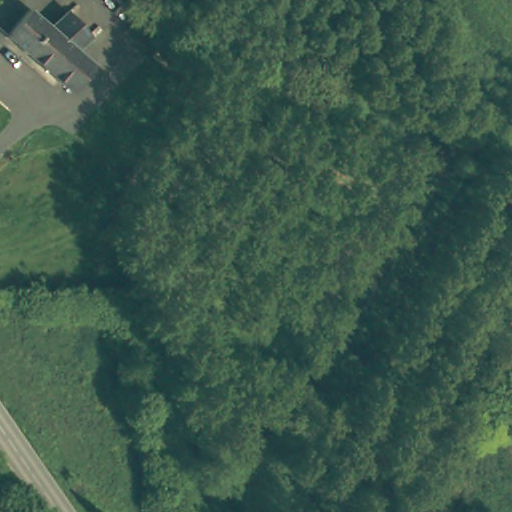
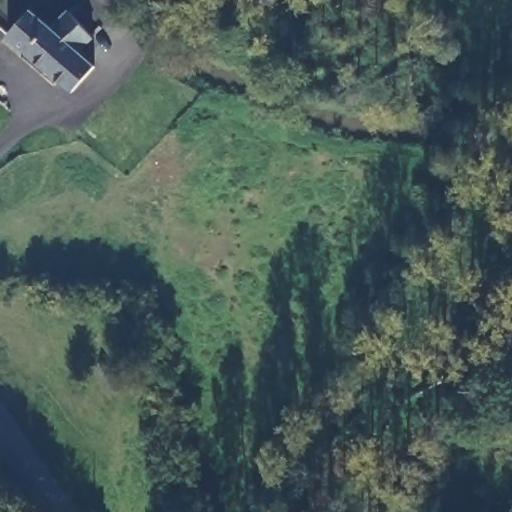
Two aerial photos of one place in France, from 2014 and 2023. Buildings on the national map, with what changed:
unchanged [(72,36),(97,65),(67,93),(2,24),(27,0),(30,0),(34,10),(63,39),(72,36)]

